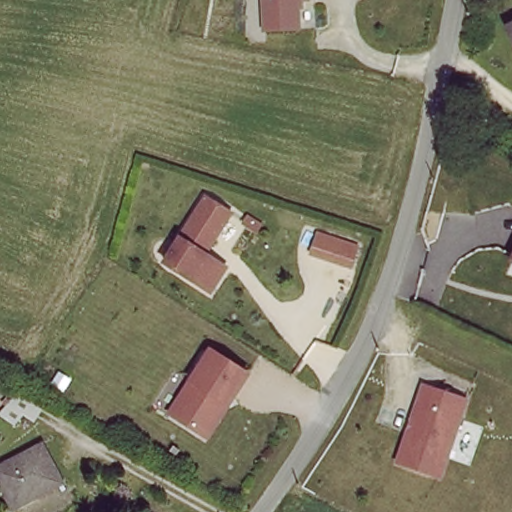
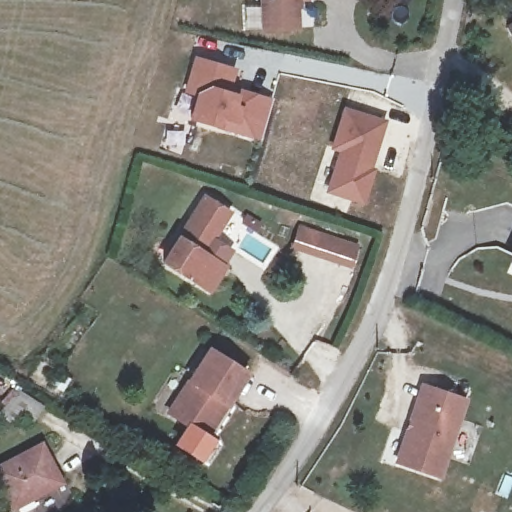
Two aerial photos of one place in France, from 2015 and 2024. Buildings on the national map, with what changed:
unchanged [(263,0),(297,0),(298,32),(265,34),(263,0)]
unchanged [(499,28),(512,21),(512,57),(499,28)]
new [(218,128),(188,119),(195,95),(181,90),(193,56),(234,70),(230,87),(271,98),(258,140),(218,128)]
new [(363,204),(325,192),(338,153),(329,149),(343,108),(385,120),(370,168),(374,169),(363,204)]
unchanged [(165,261),(206,197),(230,212),(204,253),(225,266),(210,290),(165,261)]
unchanged [(314,230),(360,246),(350,271),(307,256),(314,230)]
unchanged [(201,433),(169,413),(210,350),(247,373),(226,405),(206,436),(201,433)]
unchanged [(441,481),(395,464),(420,381),(469,400),(441,481)]
new [(34,400),(59,416),(51,426),(44,421),(28,441),(13,431),(34,400)]
unchanged [(10,508),(0,486),(0,465),(41,443),(59,481),(10,508)]

